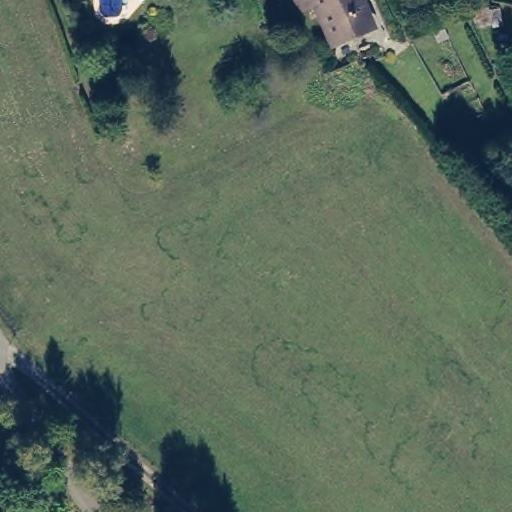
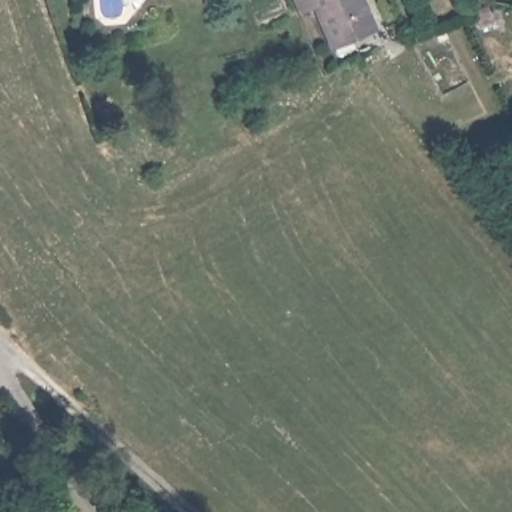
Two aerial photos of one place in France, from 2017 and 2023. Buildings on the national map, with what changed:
unchanged [(334,47),(316,7),(300,15),(293,0),(360,0),(374,30),(334,47)]

